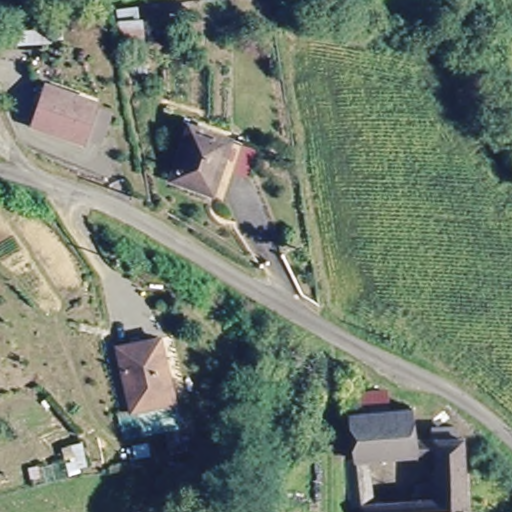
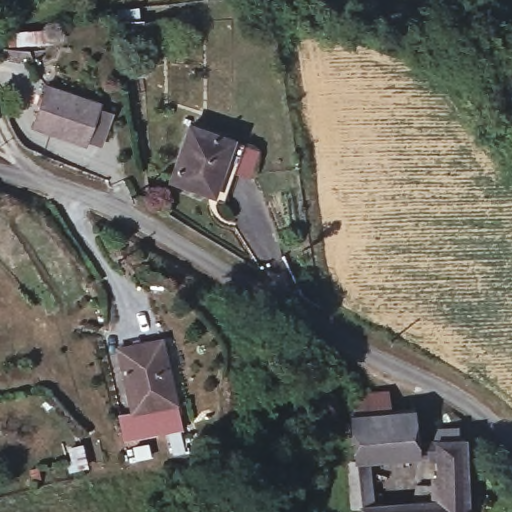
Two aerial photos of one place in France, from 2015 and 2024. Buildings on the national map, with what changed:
unchanged [(92,143),(77,138),(76,142),(25,127),(37,85),(88,102),(86,107),(103,112),(92,143)]
unchanged [(196,122),(230,137),(208,192),(173,177),(196,122)]
unchanged [(158,357),(173,415),(135,426),(120,367),(158,357)]
unchanged [(414,455),(370,460),(376,503),(416,500),(415,512),(359,512),(359,508),(349,510),(345,458),(351,458),(347,417),(344,397),(382,392),(384,413),(412,411),(414,455)]
unchanged [(463,437),(463,512),(415,512),(416,500),(417,486),(435,485),(434,440),(463,437)]

